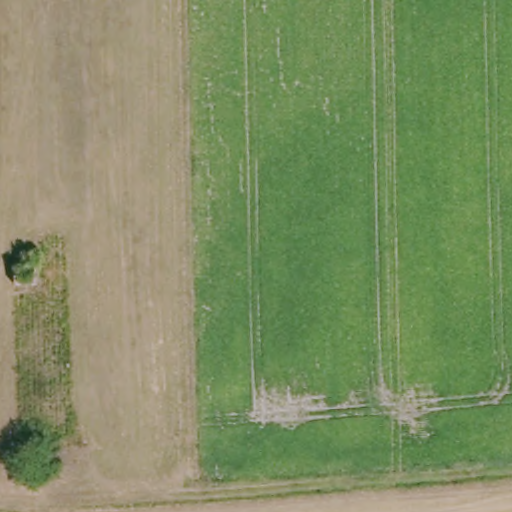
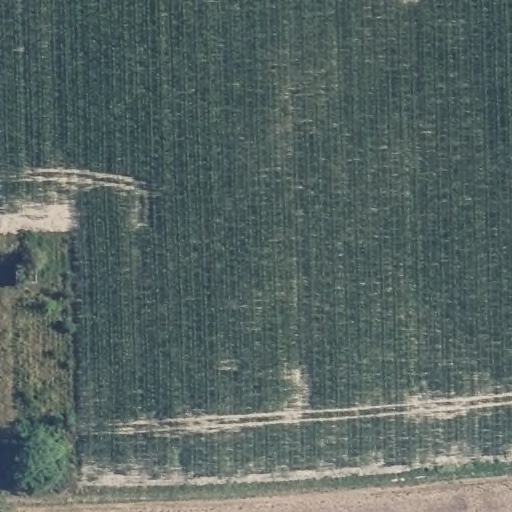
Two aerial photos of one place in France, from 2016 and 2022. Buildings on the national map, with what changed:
unchanged [(31,288),(11,288),(11,269),(30,269),(31,288)]

